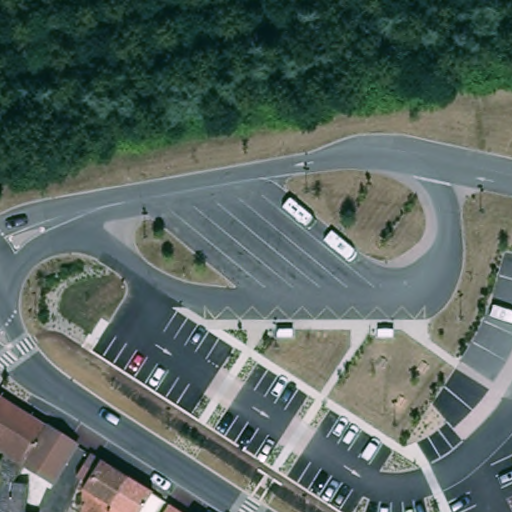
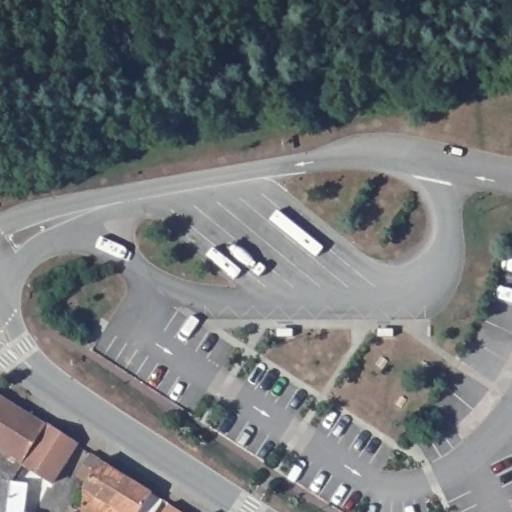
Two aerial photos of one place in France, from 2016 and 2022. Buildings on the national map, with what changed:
unchanged [(7,512),(0,512),(0,458),(3,453),(0,451),(0,398),(46,428),(22,465),(10,483),(9,491),(7,512)]
unchanged [(53,485),(22,465),(46,428),(77,447),(53,485)]
unchanged [(131,479),(117,507),(114,512),(85,512),(86,495),(86,493),(91,485),(84,481),(79,478),(85,469),(94,455),(131,479)]
unchanged [(145,512),(114,512),(117,507),(131,479),(156,495),(145,512)]
unchanged [(9,491),(27,493),(25,512),(7,512),(9,491)]
unchanged [(168,501),(185,512),(161,512),(168,501)]

